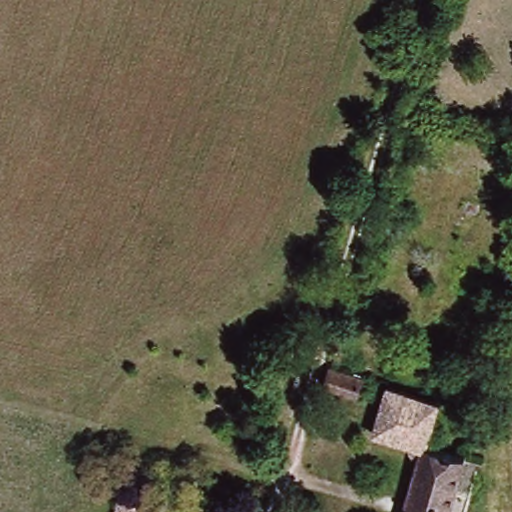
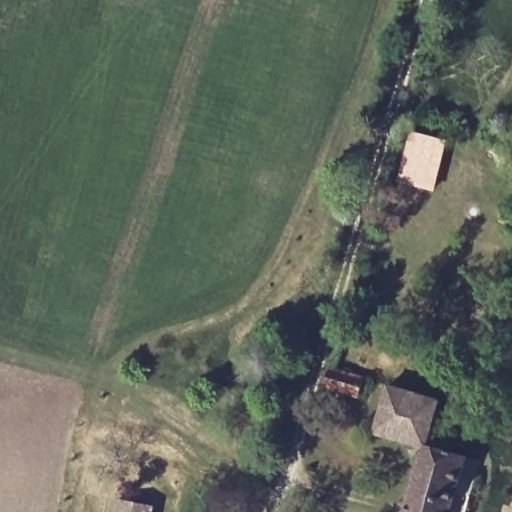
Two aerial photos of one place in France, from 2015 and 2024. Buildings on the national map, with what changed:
new [(398,180),(410,132),(447,142),(435,192),(398,180)]
unchanged [(322,387),(328,368),(363,378),(357,397),(322,387)]
unchanged [(422,452),(413,449),(414,445),(373,433),(388,386),(444,402),(430,449),(466,458),(451,512),(404,512),(422,452)]
unchanged [(116,502),(149,507),(148,512),(114,512),(116,502)]

